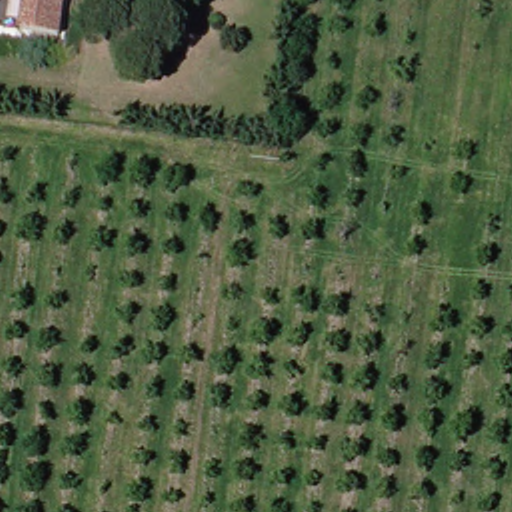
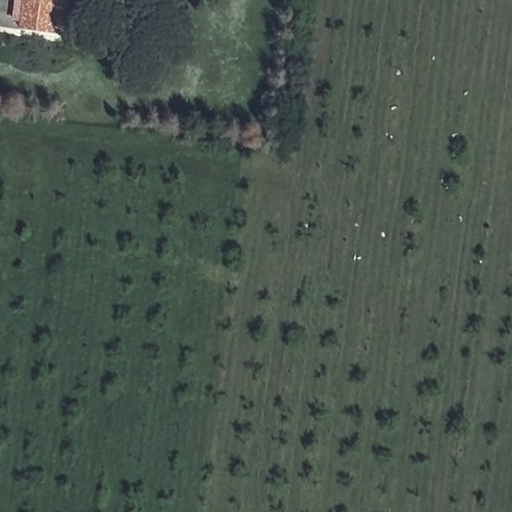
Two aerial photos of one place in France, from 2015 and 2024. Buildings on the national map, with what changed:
unchanged [(16,25),(20,0),(60,0),(54,31),(16,25)]

